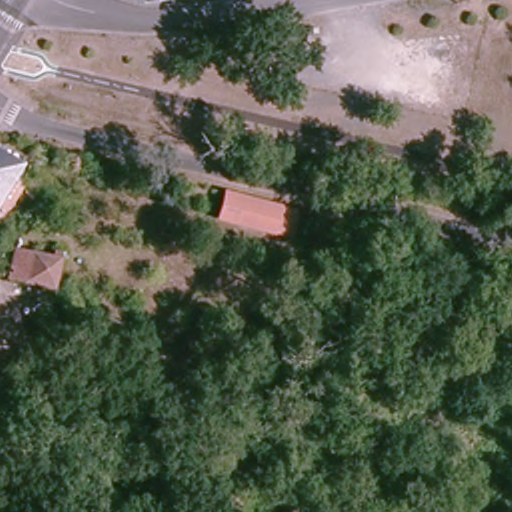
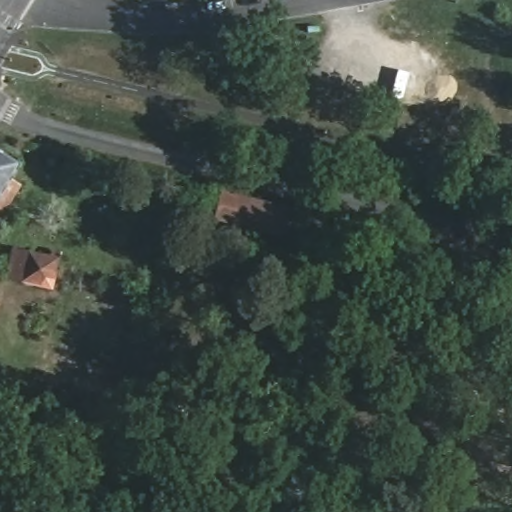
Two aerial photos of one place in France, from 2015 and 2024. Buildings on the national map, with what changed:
unchanged [(0,212),(0,150),(18,160),(8,178),(18,183),(0,212)]
unchanged [(296,214),(287,241),(211,220),(220,194),(296,214)]
unchanged [(4,281),(8,268),(8,267),(12,250),(47,257),(48,252),(59,255),(51,292),(4,281)]
unchanged [(14,451),(13,457),(21,461),(17,470),(9,466),(5,474),(0,472),(0,458),(4,446),(14,451)]

